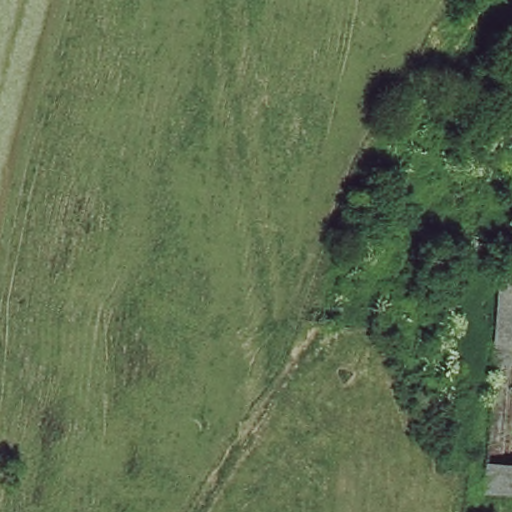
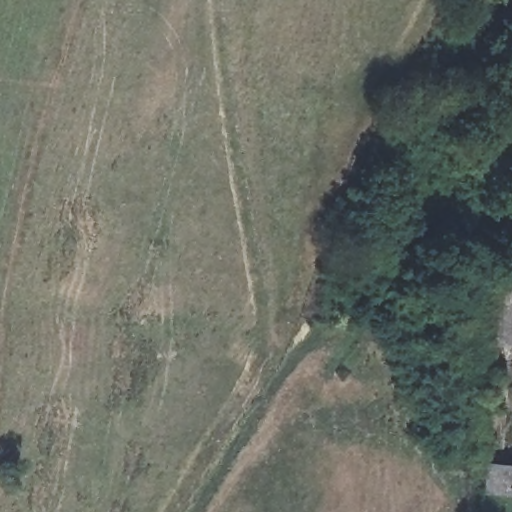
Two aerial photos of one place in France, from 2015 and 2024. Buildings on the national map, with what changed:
unchanged [(492,367),(497,260),(512,260),(512,368),(492,367)]
unchanged [(485,497),(485,465),(512,465),(512,498),(485,497)]

